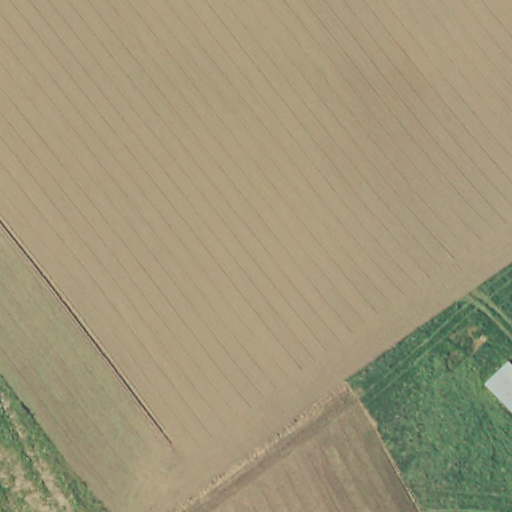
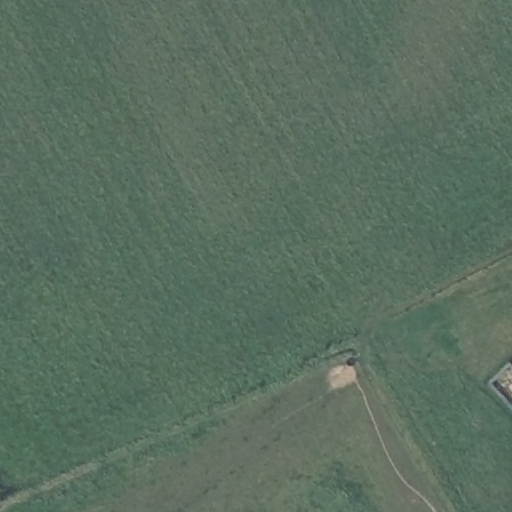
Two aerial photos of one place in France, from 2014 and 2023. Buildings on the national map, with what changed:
unchanged [(512,414),(483,385),(482,384),(488,378),(503,363),(512,372),(512,414)]

